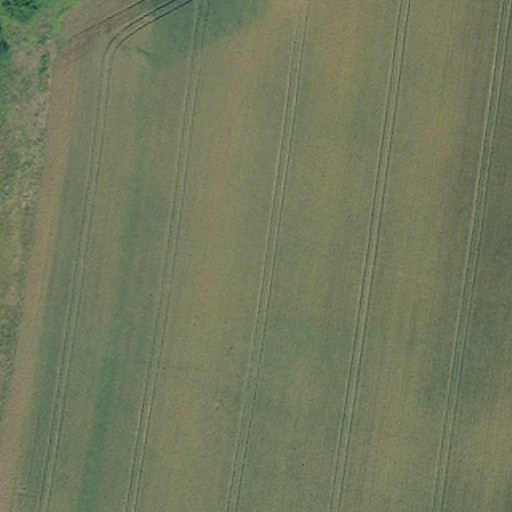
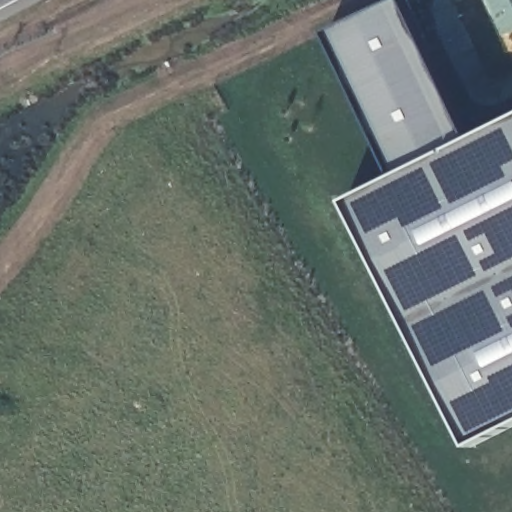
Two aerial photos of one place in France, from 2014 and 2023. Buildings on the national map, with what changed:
new [(346,201),(396,176),(329,32),(398,0),(408,0),(472,138),(512,118),(512,425),(469,446),(346,201)]

